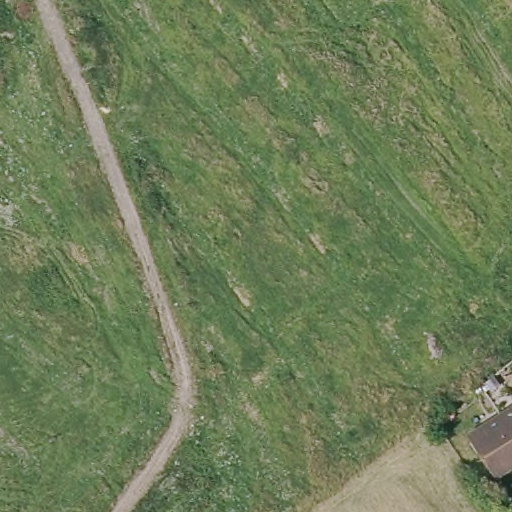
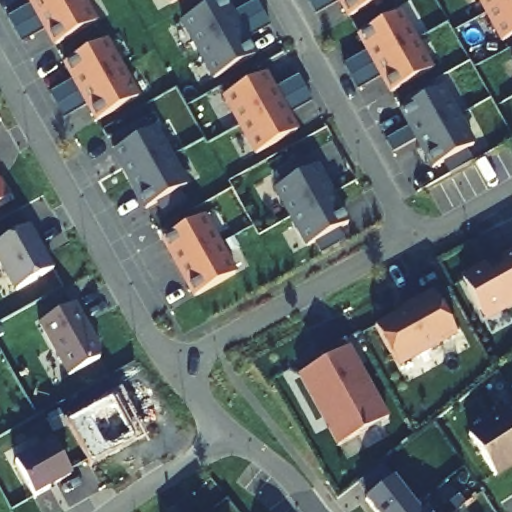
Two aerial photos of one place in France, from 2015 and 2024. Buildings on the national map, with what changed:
new [(94,24),(54,45),(27,0),(81,0),(94,24)]
new [(169,5),(166,0),(178,0),(169,5)]
new [(222,0),(226,0),(257,57),(211,82),(180,25),(222,0)]
new [(347,22),(334,0),(382,0),(347,22)]
new [(474,0),(512,0),(512,37),(499,45),(474,0)]
new [(434,70),(387,97),(355,38),(403,13),(434,70)]
new [(136,99),(97,121),(64,65),(105,41),(136,99)]
new [(512,60),(512,68),(509,61),(512,60)]
new [(299,131),(254,157),(222,99),(266,75),(299,131)]
new [(475,145),(430,171),(399,113),(445,87),(475,145)]
new [(185,186),(145,210),(113,152),(154,130),(185,186)]
new [(350,224),(305,249),(272,191),(317,166),(350,224)]
new [(10,200),(0,205),(0,183),(10,200)]
new [(235,275),(194,297),(162,240),(204,216),(235,275)]
new [(52,271),(17,292),(0,263),(0,244),(29,229),(52,271)]
new [(496,256),(512,248),(512,301),(482,318),(464,282),(499,261),(496,256)]
new [(374,325),(392,315),(396,316),(403,312),(400,307),(431,290),(455,334),(397,366),(374,325)]
new [(102,352),(100,360),(68,380),(37,325),(77,305),(102,352)]
new [(387,419),(338,446),(299,376),(325,362),(320,355),(345,341),(387,419)]
new [(90,466),(87,461),(62,418),(83,406),(86,411),(109,399),(105,394),(120,386),(144,430),(147,434),(90,466)]
unchanged [(512,412),(512,437),(500,420),(512,412)]
unchanged [(512,467),(494,480),(468,442),(500,420),(512,437),(512,467)]
new [(70,473),(47,485),(48,487),(32,496),(14,463),(52,441),(70,473)]
new [(410,500),(394,512),(377,512),(363,495),(367,492),(390,473),(410,500)]
new [(419,512),(394,512),(410,500),(419,512)]

